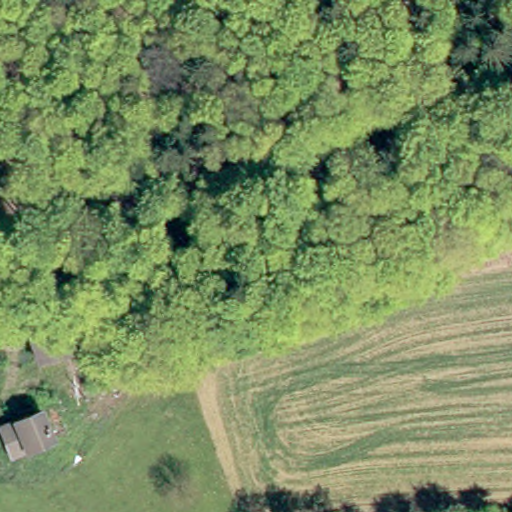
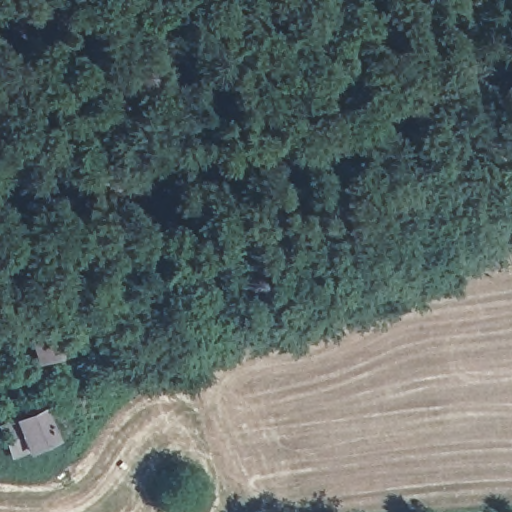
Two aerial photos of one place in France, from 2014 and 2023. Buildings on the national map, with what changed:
unchanged [(15,451),(5,422),(44,405),(48,415),(60,410),(67,425),(55,430),(57,434),(15,451)]

